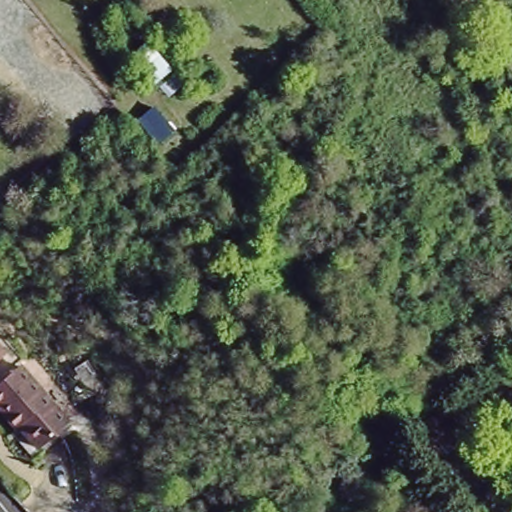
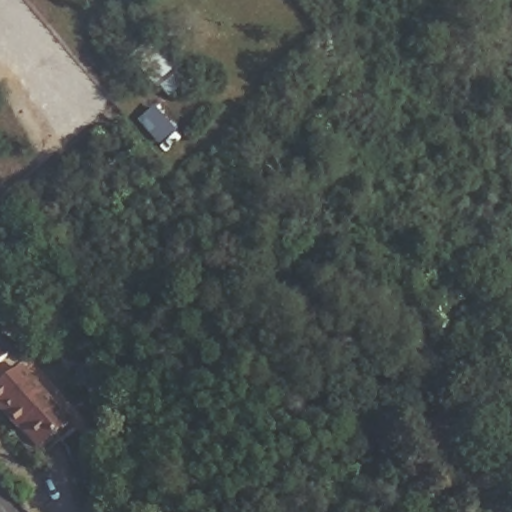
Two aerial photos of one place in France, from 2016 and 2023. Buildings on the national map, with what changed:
unchanged [(10,358),(0,367),(0,347),(10,358)]
unchanged [(24,370),(74,425),(45,452),(24,430),(22,433),(0,409),(0,392),(24,370)]

